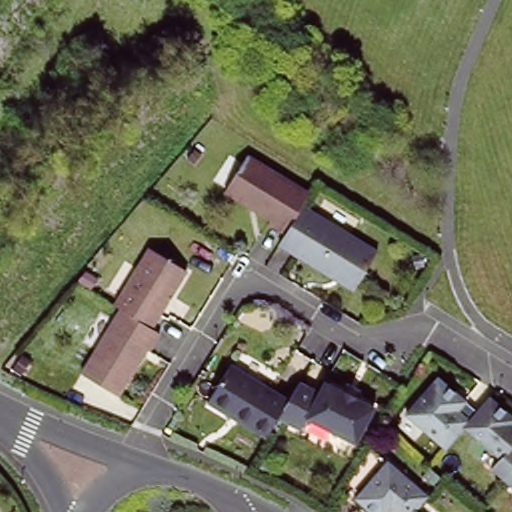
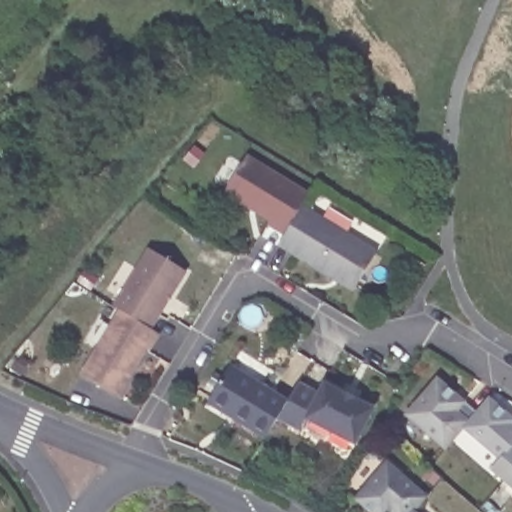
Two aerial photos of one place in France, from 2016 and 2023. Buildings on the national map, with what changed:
unchanged [(286,228),(270,218),(272,215),(227,186),(249,150),(311,188),(303,200),(286,228)]
unchanged [(354,285),(280,238),(286,228),(303,200),(378,246),(354,285)]
unchanged [(117,309),(111,305),(146,247),(182,270),(147,327),(117,309)]
unchanged [(142,345),(137,352),(140,354),(116,395),(79,372),(117,309),(147,327),(156,333),(147,348),(142,345)]
unchanged [(274,418),(262,436),(206,401),(228,365),(285,400),(274,418)]
unchanged [(408,414),(439,377),(455,392),(465,400),(477,410),(464,425),(446,447),(408,414)]
unchanged [(302,418),(296,430),(274,418),(285,400),(296,382),(315,392),(322,382),(372,407),(353,443),(302,418)]
unchanged [(512,415),(512,422),(511,423),(512,424),(512,469),(505,477),(493,467),(502,457),(464,425),(477,410),(489,396),(512,415)]
unchanged [(359,490),(390,454),(430,487),(417,503),(409,512),(383,512),(375,505),(359,490)]
unchanged [(505,477),(512,469),(512,484),(505,477)]
unchanged [(417,503),(427,512),(409,512),(417,503)]

